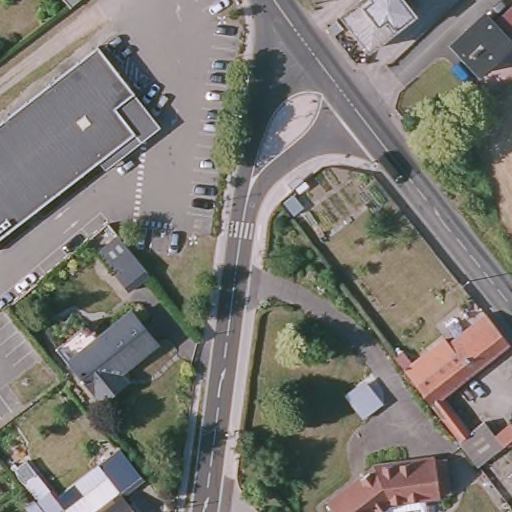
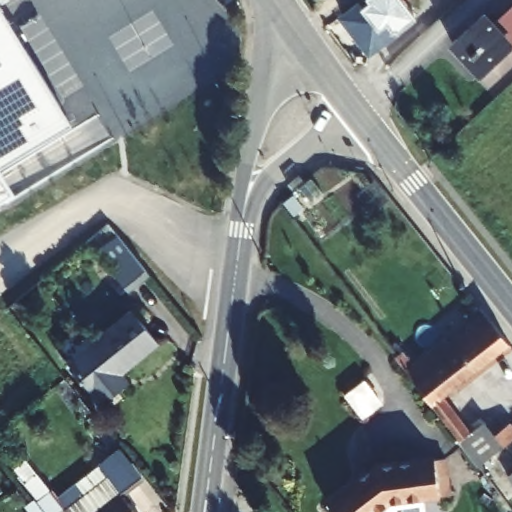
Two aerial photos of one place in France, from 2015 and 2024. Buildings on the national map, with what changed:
new [(4,0),(39,57),(76,117),(0,164),(0,0),(4,0)]
unchanged [(396,0),(410,18),(365,54),(338,19),(363,0),(396,0)]
unchanged [(459,0),(462,0),(461,1),(459,0)]
unchanged [(482,20),(492,31),(512,12),(512,52),(511,51),(480,79),(452,49),(482,20)]
demolished [(98,41),(136,89),(135,90),(117,103),(136,129),(99,157),(0,234),(0,117),(98,41)]
new [(11,194),(0,201),(0,177),(11,194)]
unchanged [(129,291),(97,252),(118,235),(150,274),(129,291)]
unchanged [(127,311),(151,341),(113,372),(112,370),(107,373),(116,385),(96,401),(64,361),(127,311)]
unchanged [(389,362),(397,357),(408,371),(441,345),(444,349),(482,320),(505,350),(439,403),(466,438),(479,427),(498,451),(473,471),(389,362)]
new [(367,382),(383,404),(364,419),(347,397),(367,382)]
unchanged [(317,504),(365,467),(364,464),(386,461),(386,464),(425,459),(425,460),(436,459),(441,494),(429,495),(429,496),(413,498),(415,512),(414,512),(323,512),(317,504)]
unchanged [(124,486),(114,474),(115,474),(129,463),(150,491),(134,503),(141,512),(91,512),(124,486)]
unchanged [(508,477),(512,474),(512,482),(508,477)]
unchanged [(66,502),(73,512),(54,512),(54,511),(66,502)]

